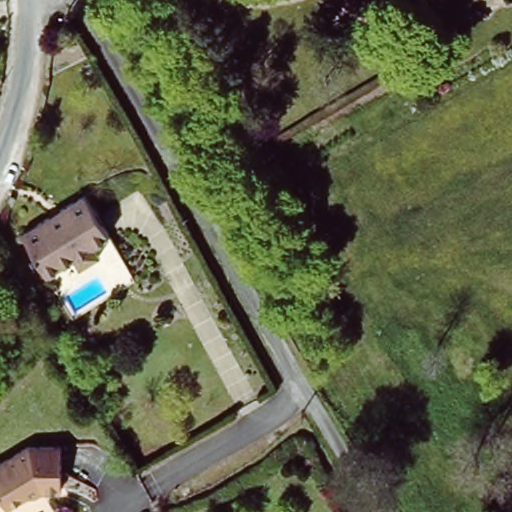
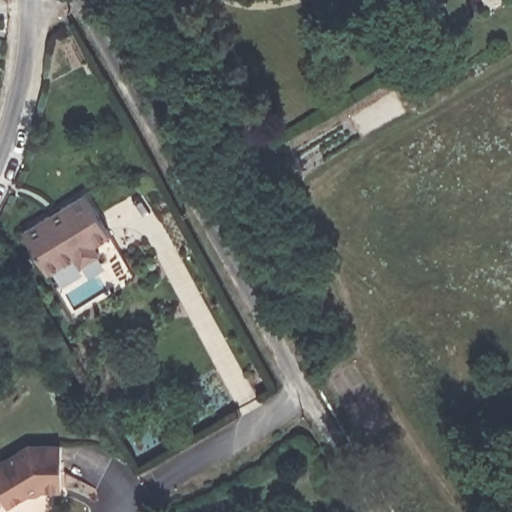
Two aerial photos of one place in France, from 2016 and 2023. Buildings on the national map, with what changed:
unchanged [(77,191),(102,234),(84,245),(90,254),(71,265),(66,257),(39,272),(13,230),(77,191)]
unchanged [(25,451),(32,447),(64,448),(63,490),(48,490),(25,451)]
unchanged [(48,490),(44,493),(38,496),(29,496),(8,508),(0,494),(0,465),(25,451),(48,490)]

